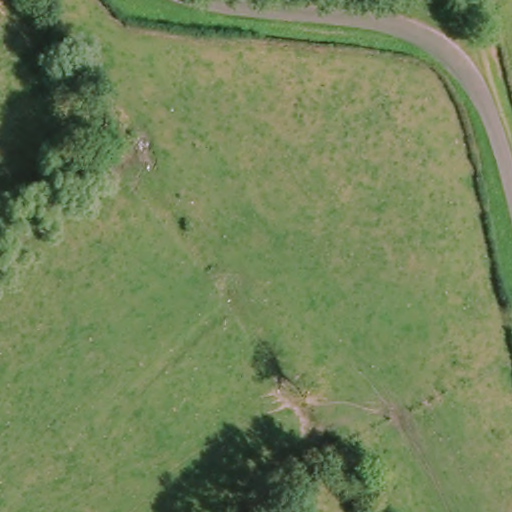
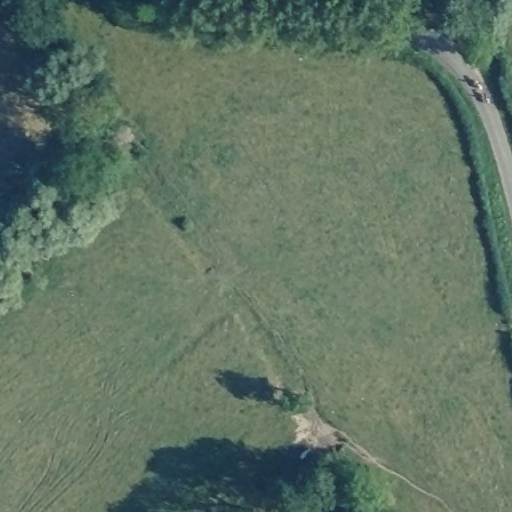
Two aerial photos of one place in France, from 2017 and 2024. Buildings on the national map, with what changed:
[]

